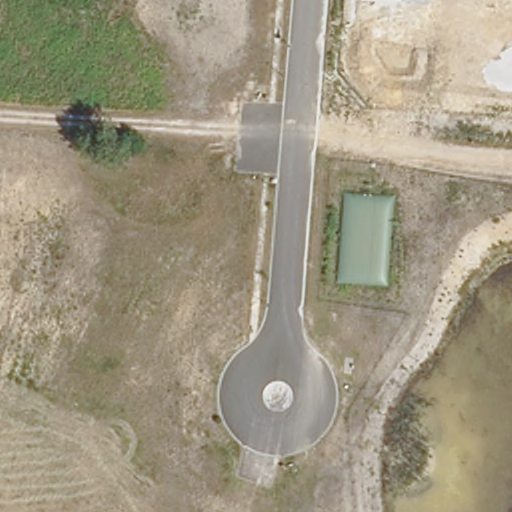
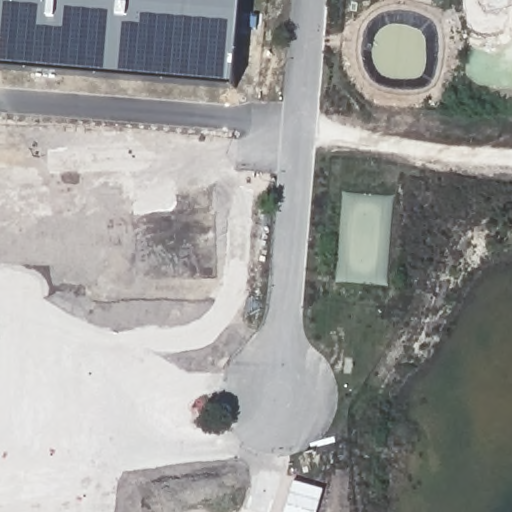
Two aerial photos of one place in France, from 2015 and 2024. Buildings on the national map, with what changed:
new [(243,0),(236,89),(0,70),(0,1),(0,0),(243,0)]

